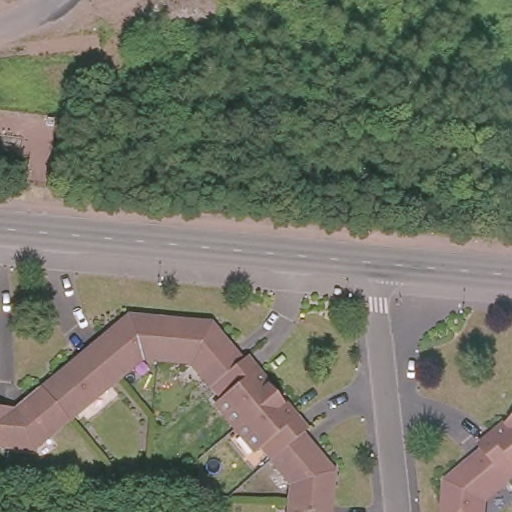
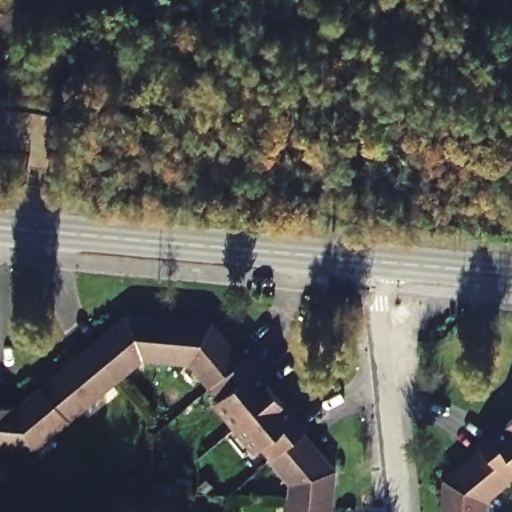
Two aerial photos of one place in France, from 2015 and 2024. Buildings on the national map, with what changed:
unchanged [(272,458),(262,445),(256,449),(237,425),(218,402),(222,397),(212,384),(192,359),(157,355),(146,354),(119,376),(70,416),(32,447),(0,444),(0,402),(1,402),(25,404),(31,399),(28,394),(43,382),(62,368),(65,370),(71,365),(68,362),(92,342),(127,314),(147,316),(147,311),(159,313),(204,317),(204,321),(217,322),(245,358),(248,355),(258,368),(257,370),(265,380),(267,378),(278,392),(288,404),(287,408),(295,418),(298,416),(307,429),(305,432),(333,465),(331,484),(335,485),(333,501),(332,512),(290,512),(291,497),(292,483),(272,458)]
unchanged [(440,485),(442,485),(443,473),(477,445),(475,442),(487,432),(490,435),(500,426),(498,424),(512,412),(512,472),(505,478),(481,497),(480,512),(438,512),(440,485)]

